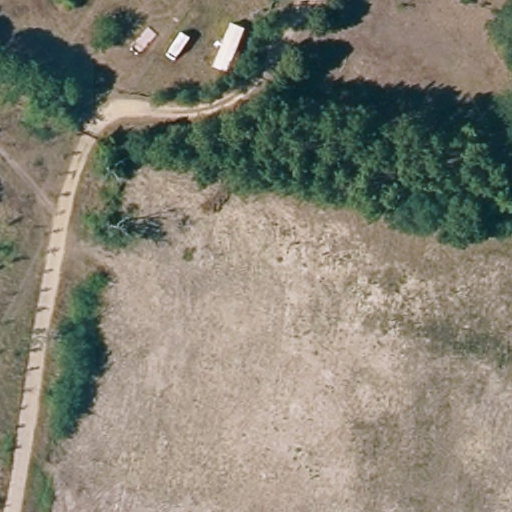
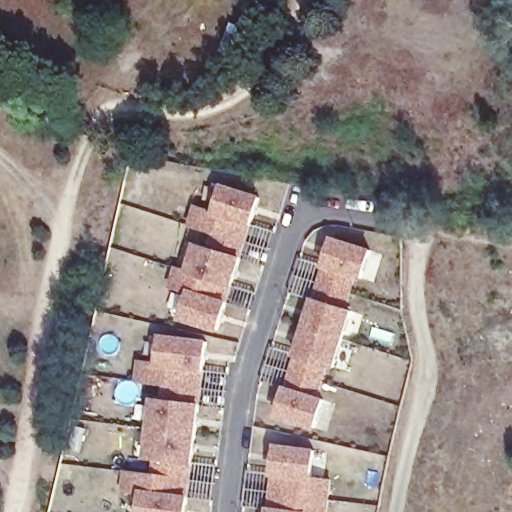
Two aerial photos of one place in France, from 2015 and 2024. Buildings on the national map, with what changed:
demolished [(150,20),(166,25),(145,75),(110,60),(131,12),(150,20)]
new [(260,196),(242,257),(229,300),(220,330),(180,319),(188,293),(171,288),(176,268),(186,270),(194,242),(209,247),(214,233),(189,226),(195,206),(213,212),(222,183),(260,196)]
new [(373,250),(363,280),(357,278),(349,308),(354,310),(336,368),(330,366),(321,397),(326,399),(318,428),(277,416),(332,236),(373,250)]
new [(208,339),(204,372),(200,403),(193,464),(190,494),(189,512),(138,512),(140,495),(122,494),(124,471),(153,473),(155,461),(146,460),(151,398),(163,399),(164,385),(135,382),(137,361),(157,363),(161,334),(208,339)]
new [(316,449),(313,478),(333,480),(330,512),(268,512),(275,444),(316,449)]

